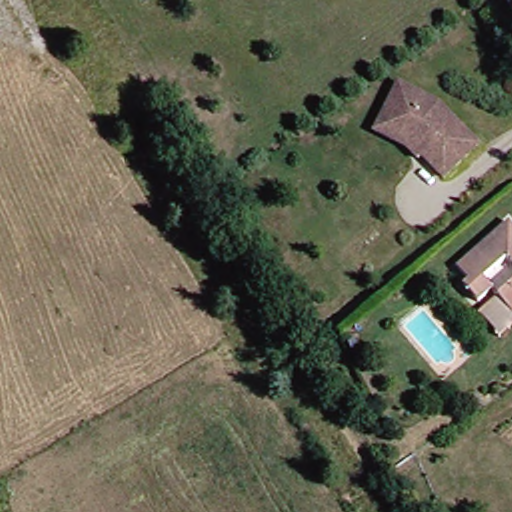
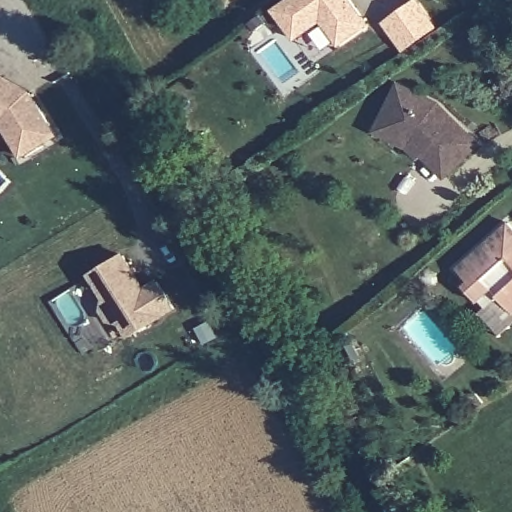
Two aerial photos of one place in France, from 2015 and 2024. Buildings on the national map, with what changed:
new [(364,25),(336,45),(318,21),(292,40),(271,11),(287,0),(346,0),(364,25)]
new [(382,25),(416,0),(417,0),(437,29),(402,54),(382,25)]
new [(57,135),(21,157),(0,128),(0,76),(29,92),(57,135)]
unchanged [(467,157),(442,182),(421,160),(413,164),(400,147),(370,131),(375,121),(397,81),(434,102),(462,133),(476,149),(467,157)]
unchanged [(492,295),(475,306),(446,275),(502,223),(512,233),(512,320),(496,335),(481,316),(498,302),(492,295)]
new [(121,324),(110,323),(102,311),(106,300),(90,275),(126,252),(147,286),(159,279),(177,310),(130,339),(121,324)]

